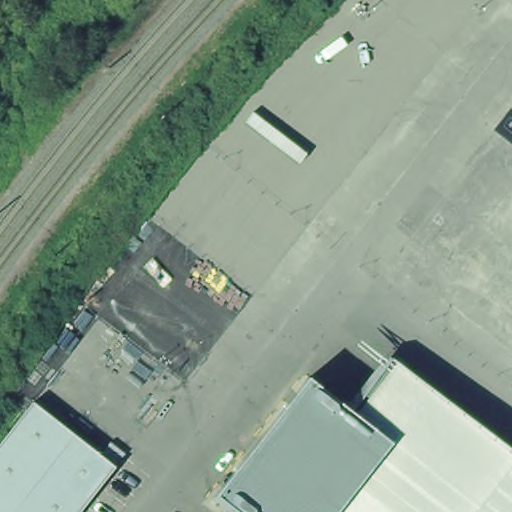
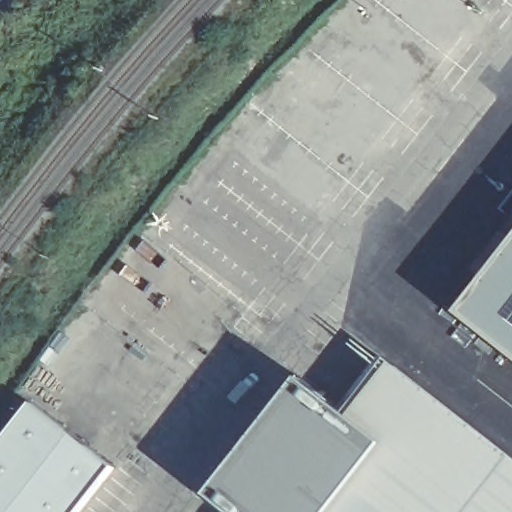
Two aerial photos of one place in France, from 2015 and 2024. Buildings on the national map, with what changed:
new [(512,249),(512,355),(462,314),(512,249)]
unchanged [(208,503),(300,387),(348,425),(390,372),(512,468),(512,512),(219,512),(208,503)]
unchanged [(27,408),(110,473),(79,512),(0,512),(0,442),(27,408)]

